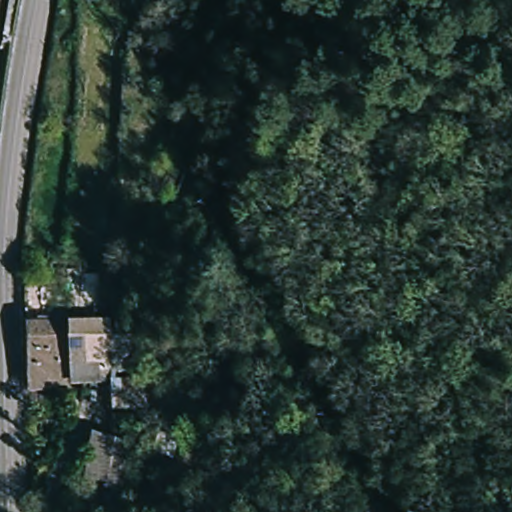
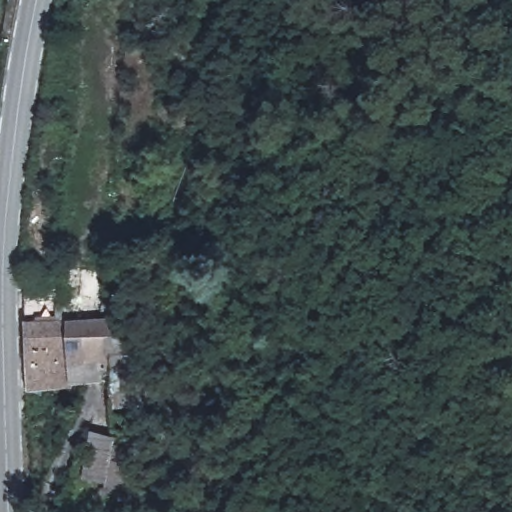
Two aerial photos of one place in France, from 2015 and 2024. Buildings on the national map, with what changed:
unchanged [(66,279),(69,325),(68,374),(31,378),(27,279),(66,279)]
unchanged [(111,373),(68,374),(69,325),(112,324),(111,373)]
unchanged [(111,373),(112,324),(136,324),(137,401),(117,401),(118,373),(111,373)]
unchanged [(31,393),(31,378),(68,374),(111,373),(111,391),(31,393)]
unchanged [(125,478),(124,485),(85,476),(92,430),(129,437),(125,478)]

